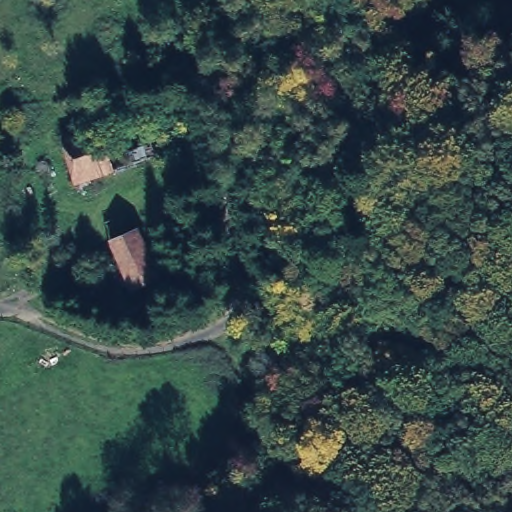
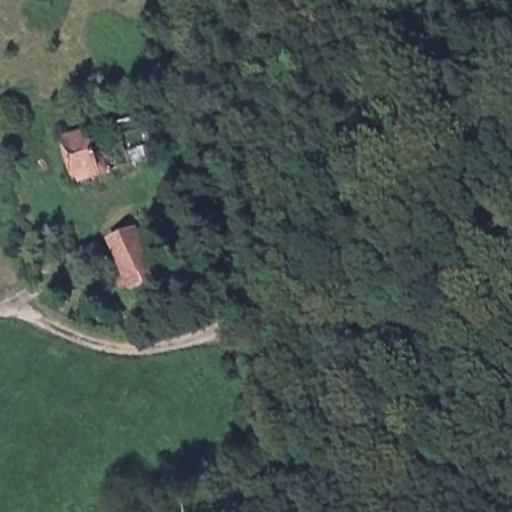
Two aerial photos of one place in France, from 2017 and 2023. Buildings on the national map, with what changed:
unchanged [(105,117),(119,164),(73,177),(60,134),(105,117)]
unchanged [(140,232),(162,275),(135,288),(115,245),(140,232)]

